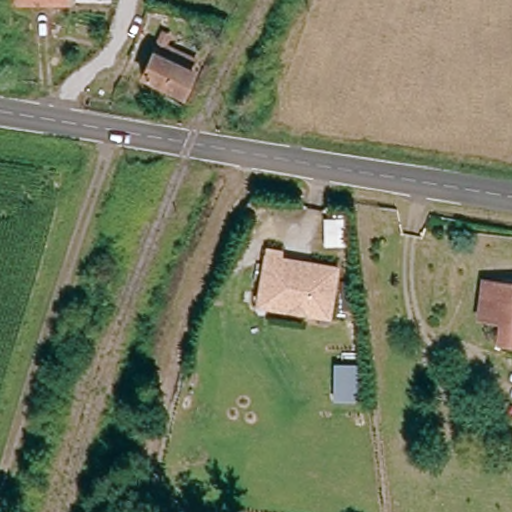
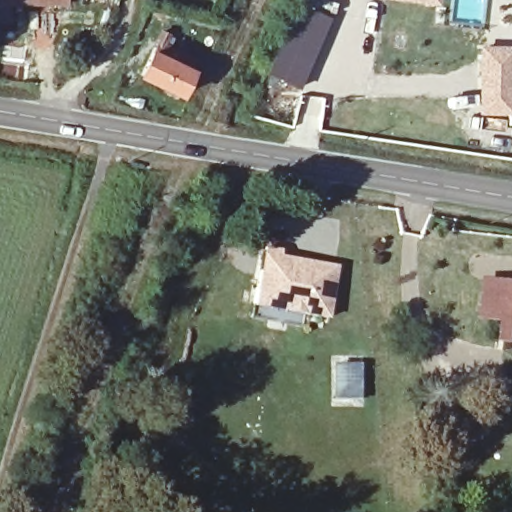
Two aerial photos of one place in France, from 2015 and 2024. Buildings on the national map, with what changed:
unchanged [(55,0),(0,4),(0,0),(55,0)]
new [(396,0),(443,0),(442,6),(396,0)]
new [(301,89),(272,77),(287,44),(281,41),(297,2),(332,17),(301,89)]
unchanged [(170,39),(167,49),(156,47),(159,36),(170,39)]
new [(512,116),(482,117),(481,47),(512,47),(512,116)]
unchanged [(187,90),(145,77),(151,55),(194,67),(187,90)]
unchanged [(262,291),(268,249),(288,252),(287,257),(345,267),(335,320),(311,316),(259,307),(262,291)]
unchanged [(502,319),(479,315),(486,277),(512,281),(512,339),(498,337),(502,319)]
new [(362,366),(363,402),(335,402),(335,365),(362,366)]

